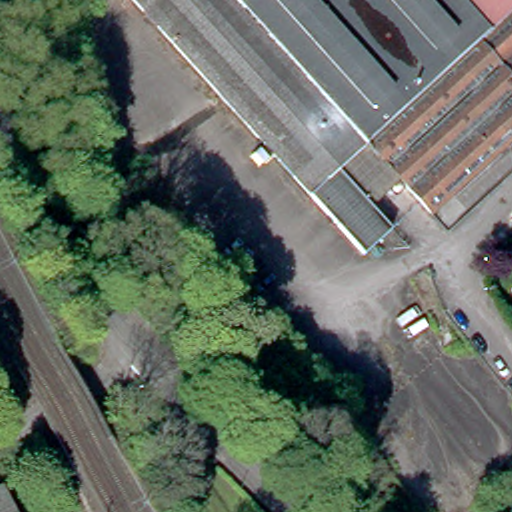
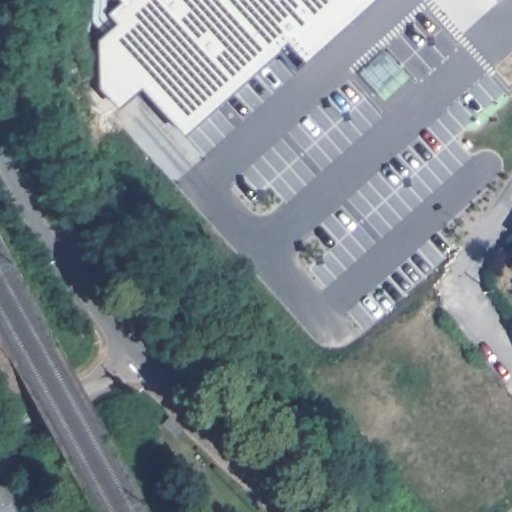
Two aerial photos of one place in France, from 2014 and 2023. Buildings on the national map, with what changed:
new [(97,39),(117,24),(109,14),(124,0),(373,0),(303,63),(285,46),(182,139),(140,93),(117,111),(99,92),(97,39)]
demolished [(483,33),(422,89),(398,110),(367,138),(352,152),(338,165),(372,203),(393,226),(363,253),(332,217),(277,156),(219,91),(137,0),(512,0),(512,7),(490,26),(483,33)]
demolished [(398,110),(422,89),(483,33),(490,26),(512,7),(512,134),(432,209),(402,176),(367,138),(398,110)]
new [(383,49),(407,76),(383,98),(359,72),(383,49)]
unchanged [(0,512),(11,506),(14,512),(0,512)]

